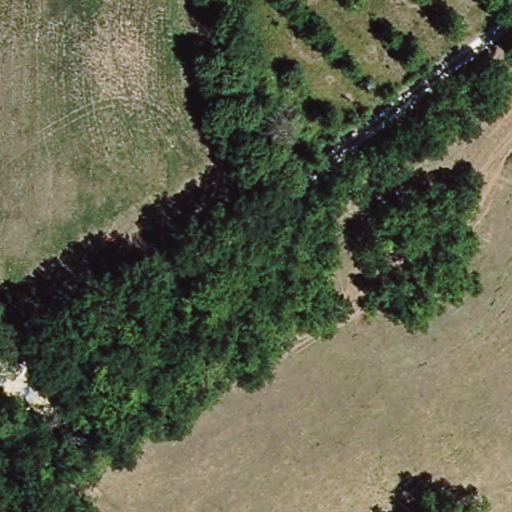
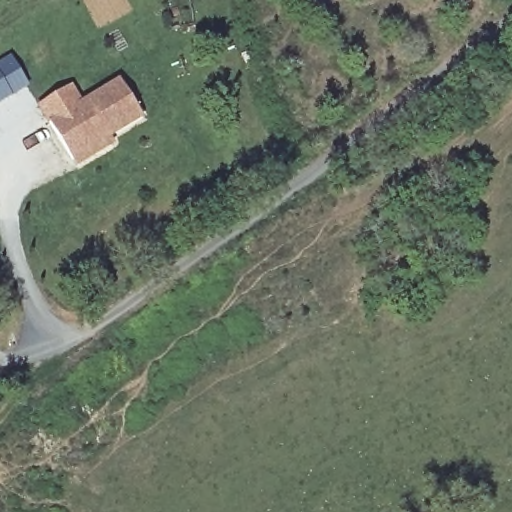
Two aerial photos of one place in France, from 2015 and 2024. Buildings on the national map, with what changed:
new [(10,55),(30,85),(0,104),(0,62),(10,55)]
new [(120,79),(145,119),(112,139),(115,145),(77,167),(48,122),(120,79)]

